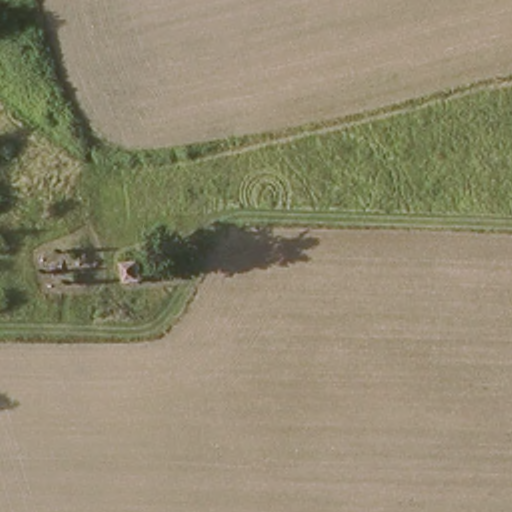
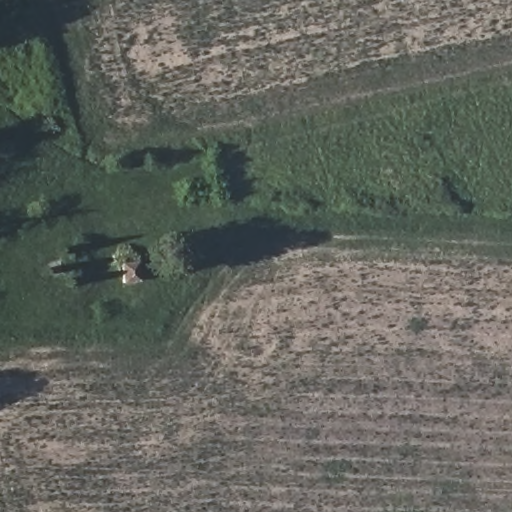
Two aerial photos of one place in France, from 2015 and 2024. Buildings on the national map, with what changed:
unchanged [(133,258),(144,277),(128,285),(118,265),(133,258)]

